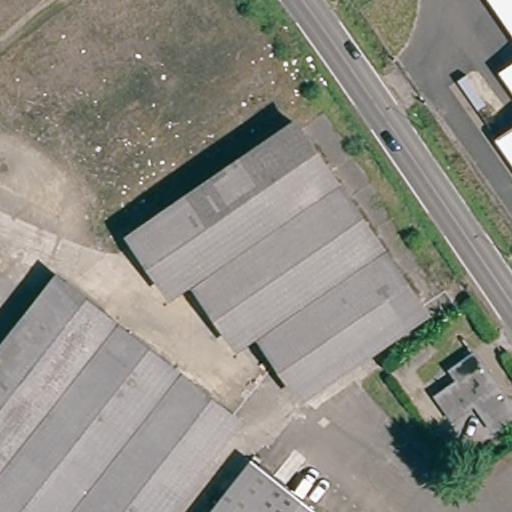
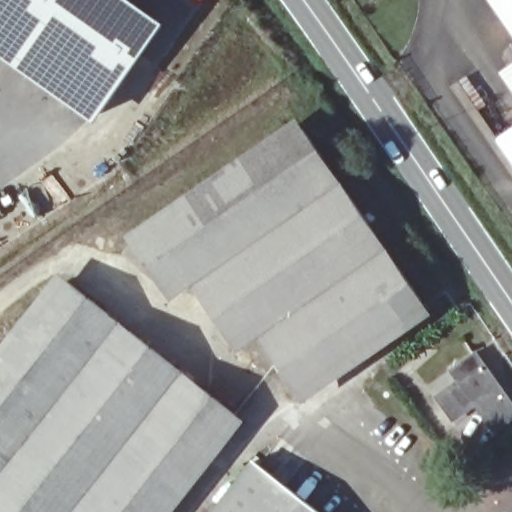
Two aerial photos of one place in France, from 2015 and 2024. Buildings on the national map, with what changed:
new [(164,23),(94,123),(0,56),(0,0),(131,0),(164,23)]
unchanged [(512,31),(491,0),(512,0),(512,31)]
new [(512,89),(500,73),(512,65),(512,89)]
unchanged [(428,307),(304,394),(282,363),(264,339),(241,354),(196,288),(174,302),(130,238),(300,122),(428,307)]
unchanged [(512,130),(512,155),(500,138),(512,130)]
unchanged [(235,417),(161,512),(0,512),(0,345),(54,275),(235,417)]
unchanged [(455,371),(480,355),(512,401),(512,421),(499,431),(480,407),(457,419),(443,398),(464,383),(455,371)]
unchanged [(315,512),(214,512),(252,463),(315,512)]

